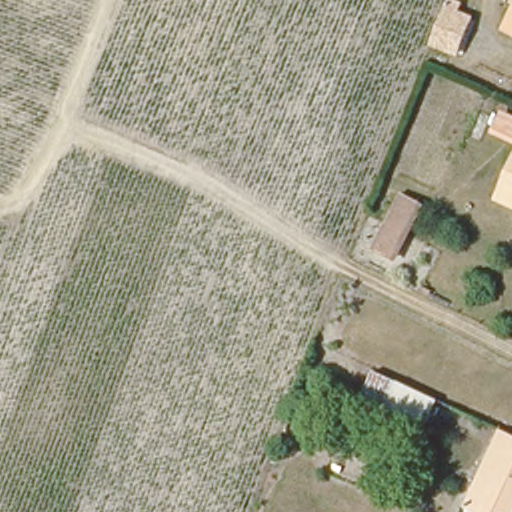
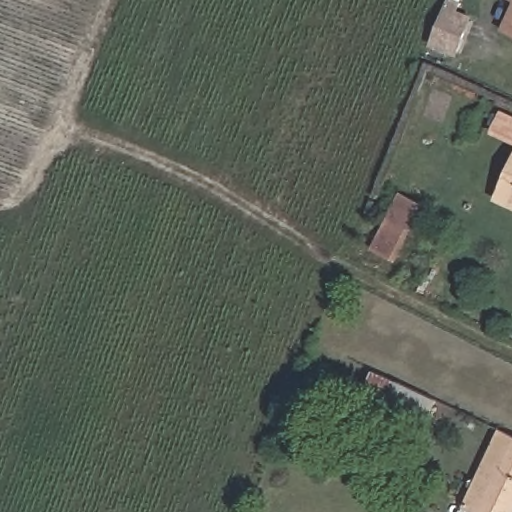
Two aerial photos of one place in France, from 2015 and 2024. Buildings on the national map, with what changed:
unchanged [(459,56),(429,45),(449,0),(459,0),(463,2),(460,11),(474,16),(459,56)]
unchanged [(511,0),(512,0),(512,1),(511,0)]
unchanged [(508,34),(512,24),(512,36),(508,34)]
unchanged [(491,134),(499,118),(512,124),(512,145),(491,134)]
unchanged [(495,204),(512,166),(512,211),(495,204)]
unchanged [(376,250),(389,222),(397,202),(401,195),(421,205),(417,212),(409,231),(396,260),(376,250)]
unchanged [(425,393),(413,418),(376,400),(387,375),(425,393)]
unchanged [(477,488),(501,438),(512,443),(512,512),(465,512),(453,506),(465,482),(477,488)]

